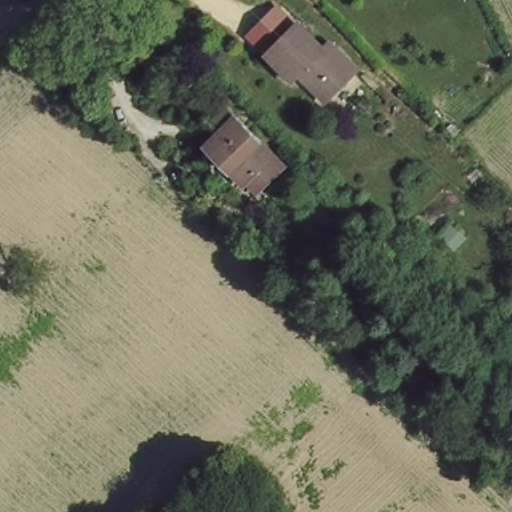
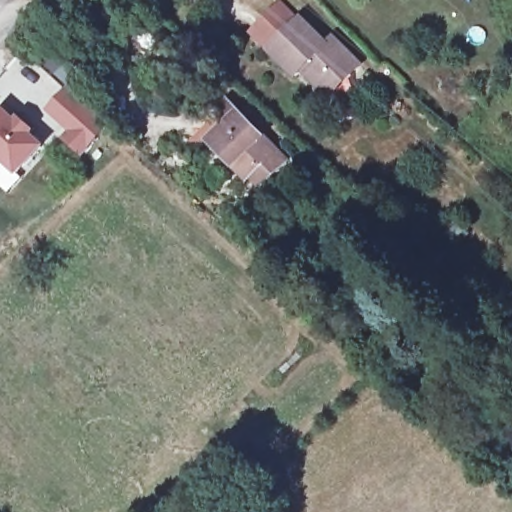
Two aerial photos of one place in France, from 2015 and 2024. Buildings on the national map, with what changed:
unchanged [(327,51),(335,44),(361,72),(331,100),(305,73),(296,81),(269,55),(303,26),(327,51)]
unchanged [(60,41),(73,55),(57,71),(43,57),(60,41)]
new [(71,89),(110,125),(85,152),(69,137),(76,130),(53,109),(71,89)]
unchanged [(248,180),(212,143),(228,128),(217,116),(231,102),(242,114),(292,163),(274,181),(260,193),(248,180)]
new [(24,118),(35,129),(32,133),(45,145),(18,174),(0,157),(0,117),(8,109),(20,122),(24,118)]

